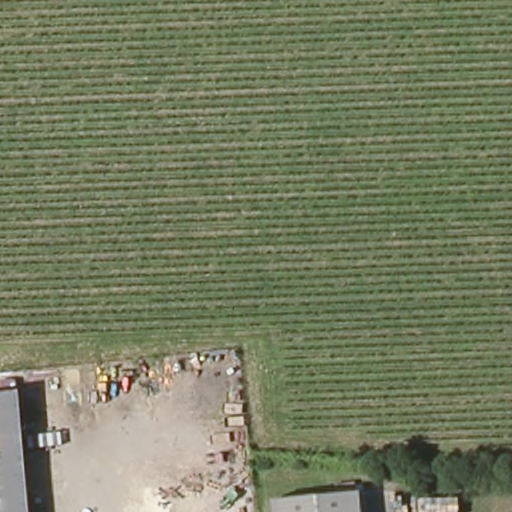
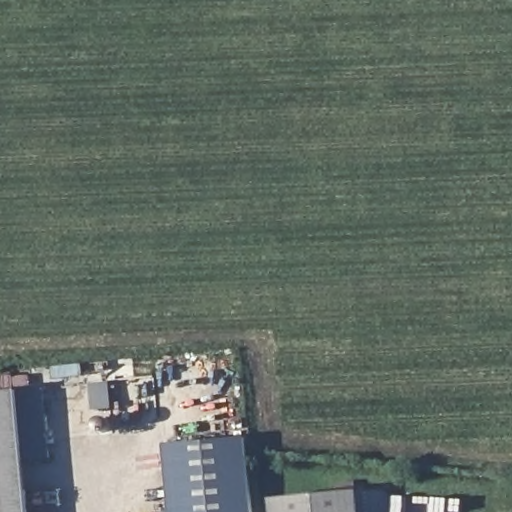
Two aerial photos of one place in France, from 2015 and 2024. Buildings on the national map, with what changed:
unchanged [(33,512),(0,512),(0,390),(24,388),(33,512)]
new [(165,444),(245,437),(253,512),(172,512),(165,444)]
unchanged [(281,496),(363,490),(365,512),(282,512),(281,496)]

